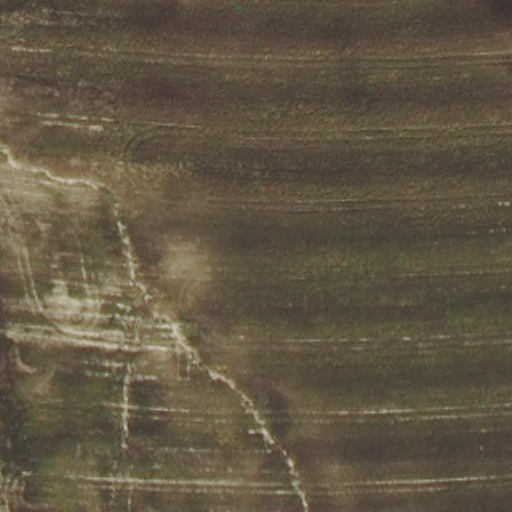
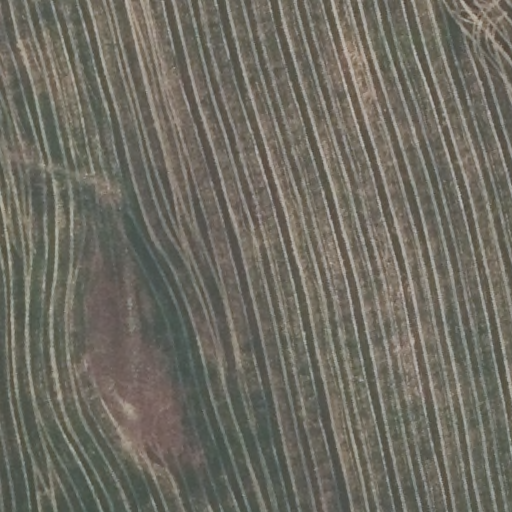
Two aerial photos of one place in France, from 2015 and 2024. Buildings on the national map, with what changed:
[]

